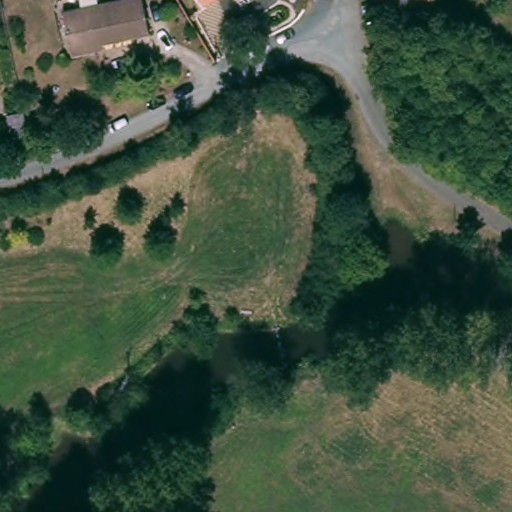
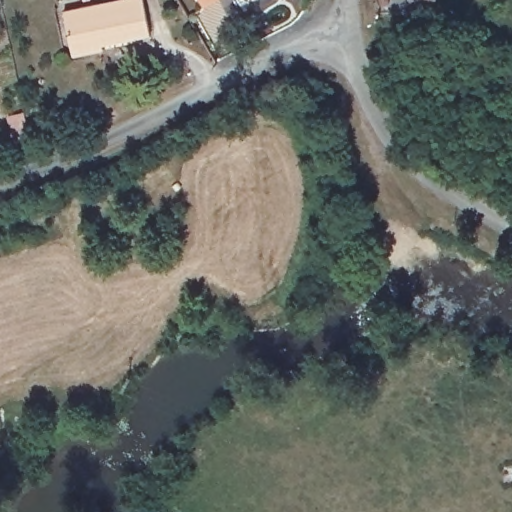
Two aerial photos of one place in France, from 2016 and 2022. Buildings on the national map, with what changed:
unchanged [(151,34),(95,44),(95,49),(73,54),(63,9),(108,0),(143,0),(151,34)]
unchanged [(216,15),(205,0),(236,0),(216,15)]

